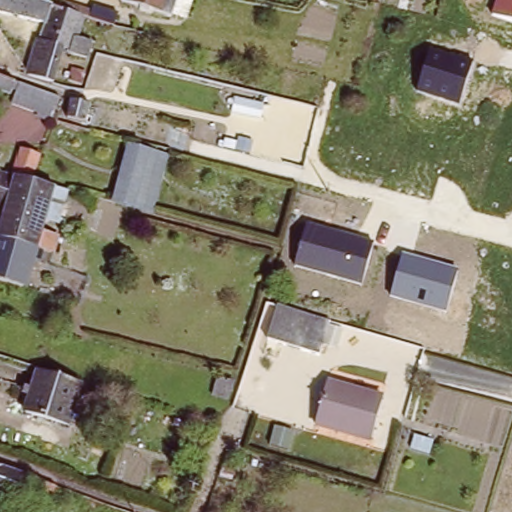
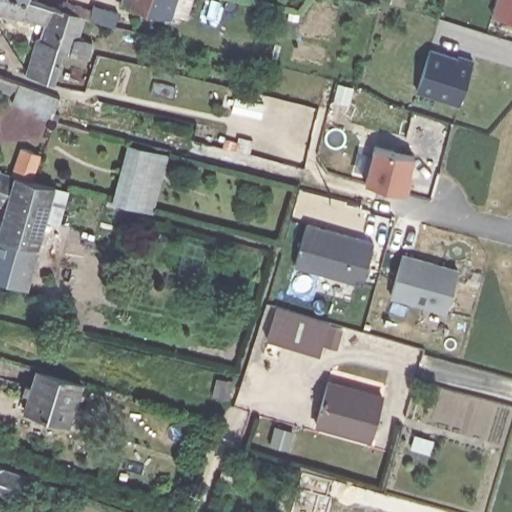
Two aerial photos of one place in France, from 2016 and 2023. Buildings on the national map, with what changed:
unchanged [(66,52),(56,80),(28,69),(48,17),(0,3),(0,0),(26,0),(28,1),(60,10),(63,1),(92,8),(95,4),(119,11),(115,24),(113,24),(88,17),(81,35),(99,42),(93,61),(74,55),(66,52)]
unchanged [(28,0),(28,1),(26,0),(28,0)]
unchanged [(171,14),(123,1),(123,0),(175,0),(173,11),(171,14)]
unchanged [(512,0),(512,20),(493,14),(497,0),(512,0)]
unchanged [(416,91),(429,48),(473,62),(459,105),(416,91)]
unchanged [(11,93),(0,90),(0,76),(15,82),(11,93)]
unchanged [(20,81),(63,97),(50,122),(9,107),(20,81)]
unchanged [(86,125),(66,120),(71,101),(92,106),(86,125)]
unchanged [(173,154),(154,212),(110,200),(126,142),(173,154)]
unchanged [(3,205),(0,204),(0,169),(8,171),(20,144),(40,151),(30,177),(54,185),(26,287),(0,279),(0,215),(3,205)]
new [(369,145),(409,155),(404,176),(407,177),(403,192),(360,181),(369,145)]
unchanged [(361,286),(295,266),(309,222),(374,243),(361,286)]
unchanged [(447,312),(390,296),(403,254),(458,270),(447,312)]
unchanged [(321,357),(268,342),(279,301),(333,316),(321,357)]
unchanged [(73,426),(31,413),(34,403),(25,401),(29,386),(38,389),(43,373),(85,387),(73,426)]
unchanged [(376,443),(321,427),(333,385),(388,401),(376,443)]
unchanged [(57,482),(54,490),(44,486),(39,497),(19,492),(16,496),(0,490),(0,463),(57,482)]

